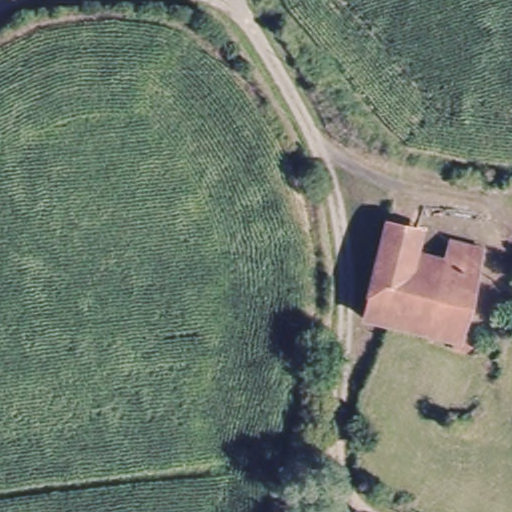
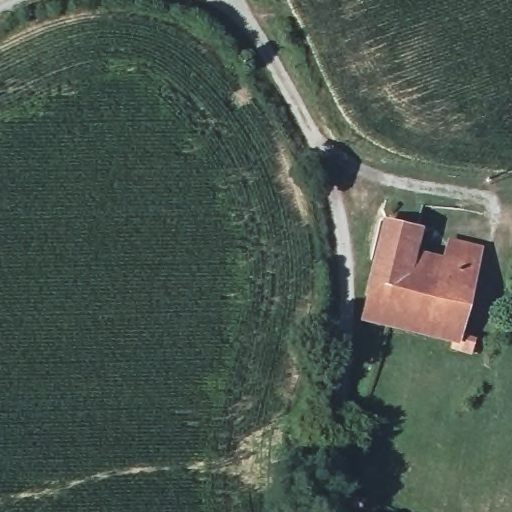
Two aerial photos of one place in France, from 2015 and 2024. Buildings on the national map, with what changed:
unchanged [(450,346),(452,340),(357,313),(381,215),(415,223),(410,244),(442,257),(451,236),(477,244),(471,265),(456,330),(472,338),(467,351),(450,346)]
unchanged [(510,295),(512,290),(512,296),(510,295)]

